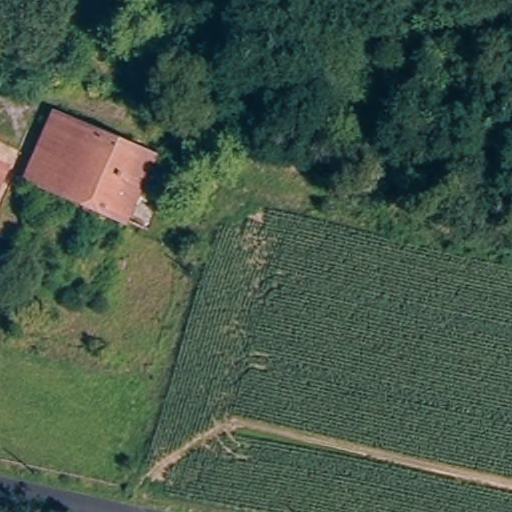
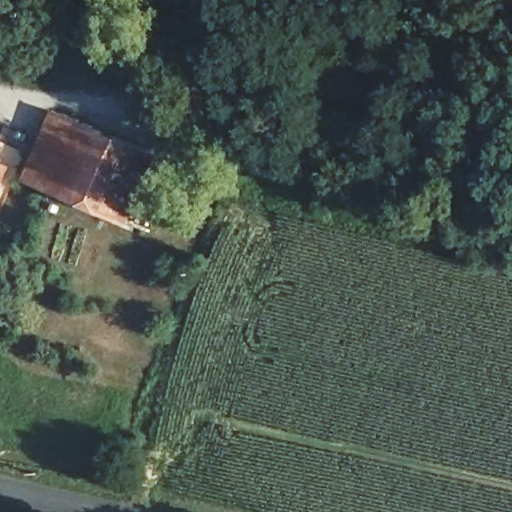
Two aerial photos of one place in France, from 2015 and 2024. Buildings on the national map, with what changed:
unchanged [(208,104),(196,133),(166,120),(180,92),(208,104)]
unchanged [(130,227),(49,191),(28,180),(56,115),(159,159),(131,224),(130,227)]
unchanged [(0,181),(0,171),(4,172),(0,181)]

